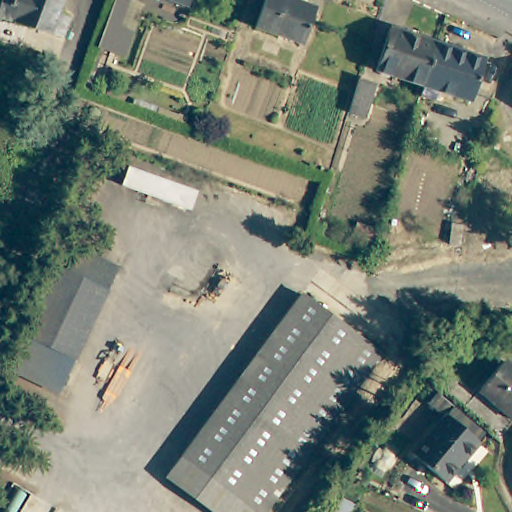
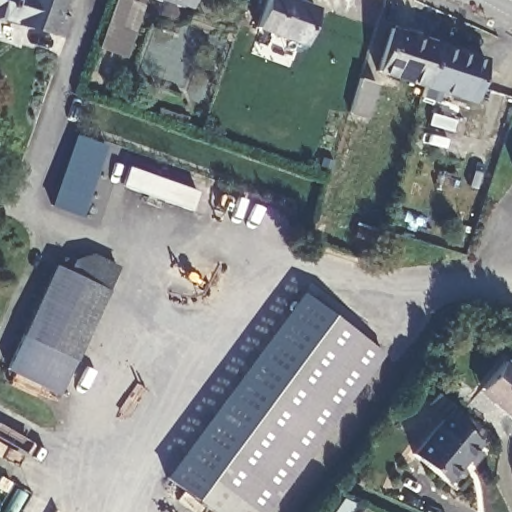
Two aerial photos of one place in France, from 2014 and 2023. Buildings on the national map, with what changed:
unchanged [(62,12),(74,16),(68,35),(55,31),(54,32),(0,16),(0,0),(67,0),(62,12)]
unchanged [(98,45),(108,17),(114,0),(135,0),(144,3),(134,30),(124,55),(98,45)]
unchanged [(186,5),(172,0),(188,0),(186,5)]
unchanged [(270,0),(299,0),(319,7),(306,44),(260,26),(270,0)]
unchanged [(424,85),(377,71),(391,28),(437,43),(424,85)]
unchanged [(484,58),(471,101),(424,85),(437,43),(484,58)]
unchanged [(366,117),(349,112),(359,78),(377,83),(366,117)]
new [(81,216),(50,205),(77,133),(107,145),(81,216)]
unchanged [(130,165),(200,189),(193,207),(120,186),(130,165)]
unchanged [(74,357),(24,333),(55,265),(68,270),(73,259),(91,251),(118,264),(74,357)]
unchanged [(314,283),(394,343),(269,512),(236,512),(177,467),(314,283)]
unchanged [(58,391),(8,367),(24,333),(74,357),(58,391)]
unchanged [(512,366),(512,418),(494,402),(496,400),(482,388),(505,360),(512,366)]
unchanged [(441,486),(408,459),(441,420),(425,406),(432,398),(479,438),(472,446),(474,447),(441,486)]

